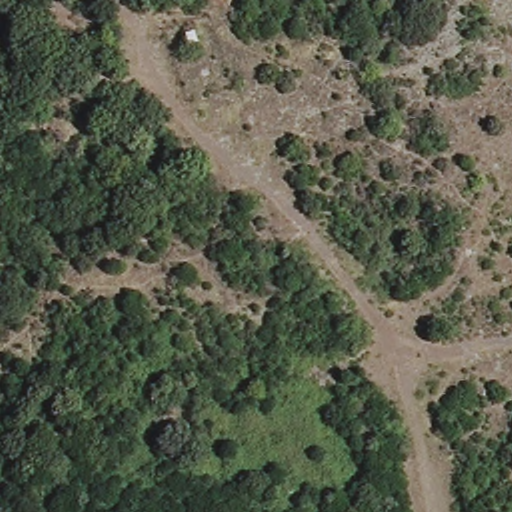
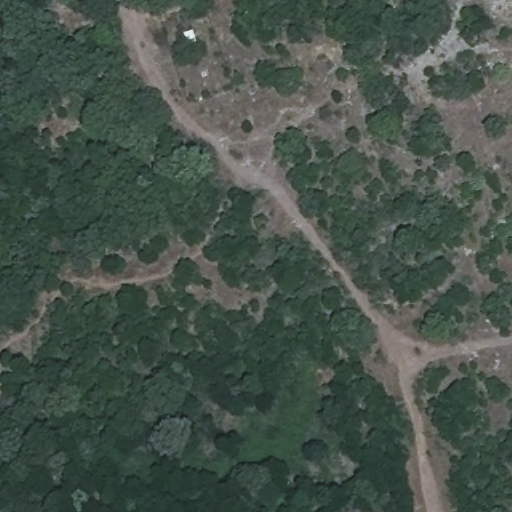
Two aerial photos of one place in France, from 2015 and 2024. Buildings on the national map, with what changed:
unchanged [(197,26),(197,44),(185,46),(182,46),(180,30),(185,29),(197,26)]

